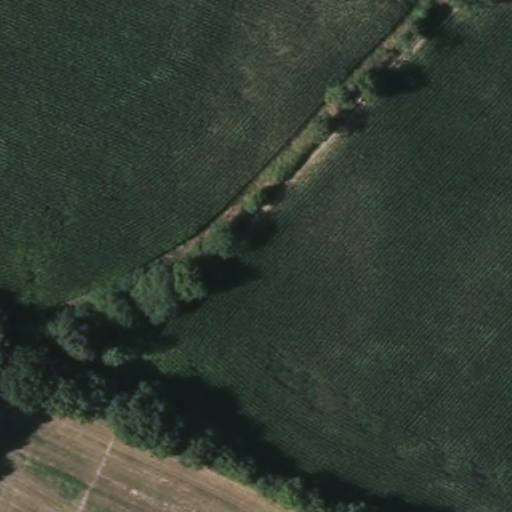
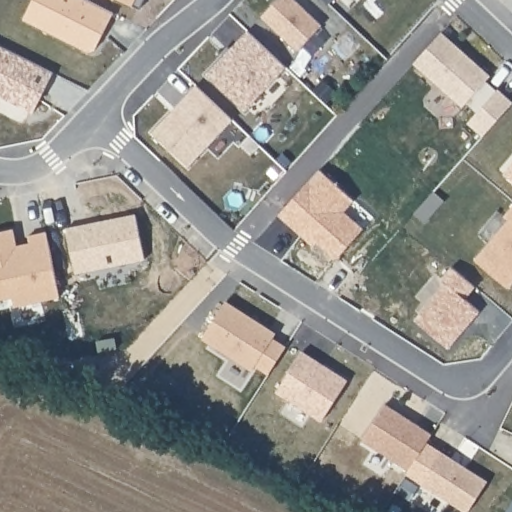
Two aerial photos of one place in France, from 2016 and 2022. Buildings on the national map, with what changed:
new [(87,55),(23,22),(34,0),(80,0),(112,16),(94,53),(87,55)]
new [(122,0),(144,0),(139,8),(122,0)]
new [(263,15),(277,0),(298,0),(321,23),(297,49),(263,15)]
new [(332,0),(328,4),(325,0),(332,0)]
new [(285,67),(245,109),(208,73),(248,30),(285,67)]
new [(460,105),(414,63),(442,31),(490,75),(460,105)]
new [(231,119),(187,165),(151,131),(196,84),(231,119)]
new [(317,173),(351,204),(341,215),(361,233),(334,263),(315,246),(311,250),(276,218),(317,173)]
new [(504,217),(512,207),(512,283),(509,287),(474,260),(507,220),(504,217)]
new [(444,283),(440,280),(451,267),(475,286),(466,297),(479,309),(449,349),(416,318),(444,283)]
new [(269,373),(256,364),(253,369),(202,338),(227,300),(277,332),(273,337),(286,345),(269,373)]
new [(320,419),(276,391),(302,349),(348,379),(320,419)]
new [(381,408),(428,438),(405,474),(358,444),(381,408)]
new [(438,456),(484,486),(467,512),(455,512),(417,488),(438,456)]
new [(512,502),(512,512),(506,512),(512,502)]

